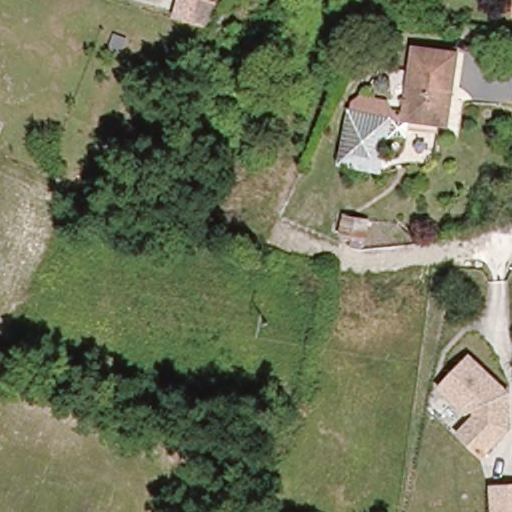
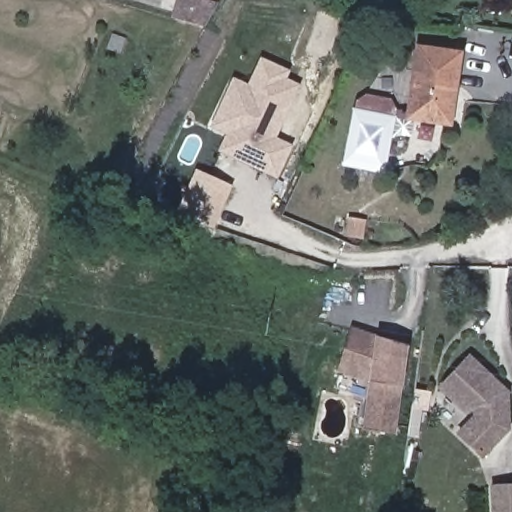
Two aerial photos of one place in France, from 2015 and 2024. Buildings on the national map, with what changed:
unchanged [(175,0),(210,0),(199,22),(172,14),(175,0)]
unchanged [(410,118),(406,138),(394,136),(387,146),(382,175),(342,167),(353,105),(360,94),(387,100),(392,110),(403,112),(403,106),(398,104),(399,96),(408,97),(413,50),(459,55),(449,124),(410,118)]
new [(224,135),(207,126),(232,75),(245,81),(258,54),(285,67),(285,75),(295,85),(291,95),(294,96),(275,136),(292,144),(275,178),(217,150),(224,135)]
new [(363,430),(368,382),(336,372),(351,326),(374,336),(408,349),(403,385),(396,435),(363,430)]
unchanged [(506,394),(508,428),(479,456),(456,433),(472,417),(474,410),(465,414),(439,388),(470,358),(506,394)]
unchanged [(491,485),(512,484),(512,512),(492,512),(491,485)]

